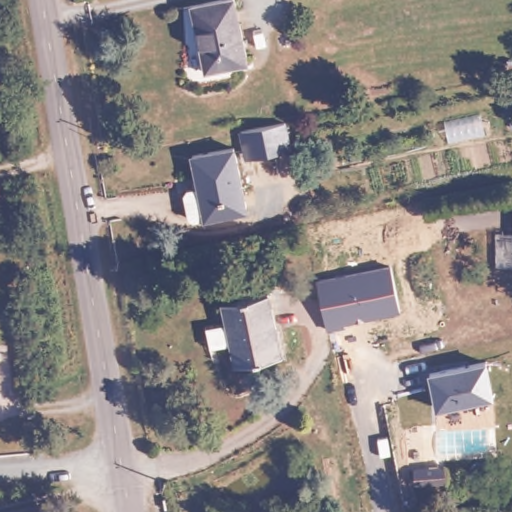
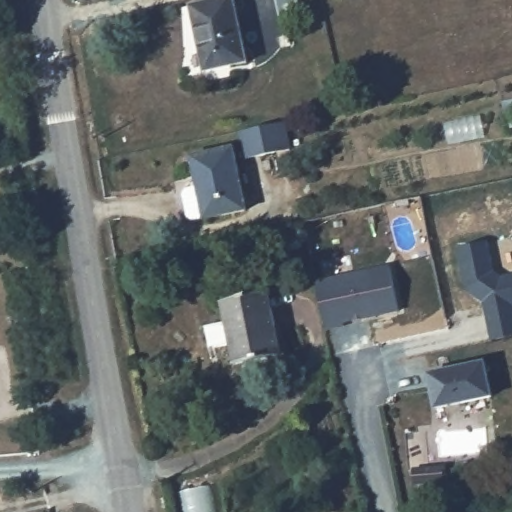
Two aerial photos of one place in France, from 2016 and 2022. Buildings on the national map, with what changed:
unchanged [(189,21),(186,4),(204,0),(231,0),(233,11),(241,55),(198,65),(189,21)]
unchanged [(288,119),(293,149),(246,157),(240,126),(288,119)]
unchanged [(186,149),(229,140),(243,204),(214,212),(200,215),(186,149)]
new [(465,290),(457,247),(488,240),(494,270),(502,275),(512,273),(512,335),(491,340),(484,302),(465,290)]
unchanged [(345,321),(345,326),(330,330),(318,279),(390,263),(400,312),(345,321)]
unchanged [(284,350),(239,358),(235,338),(218,341),(213,317),(230,315),(225,289),(269,278),(284,350)]
unchanged [(437,408),(428,370),(485,358),(493,396),(437,408)]

